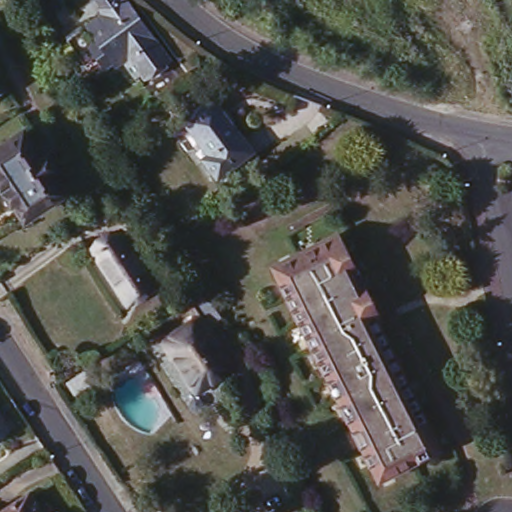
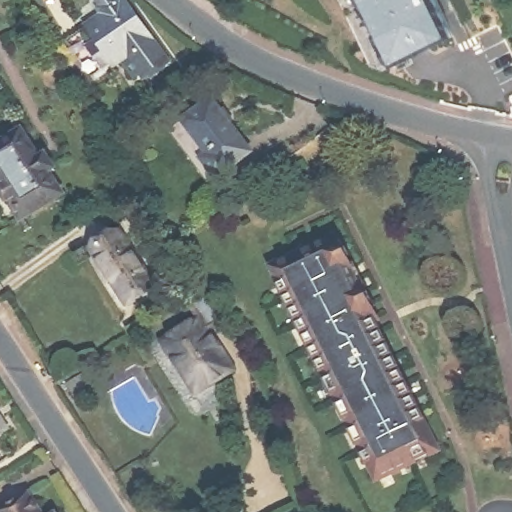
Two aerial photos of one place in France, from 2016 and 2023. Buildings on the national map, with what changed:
unchanged [(111,0),(139,0),(177,55),(152,72),(137,52),(124,60),(101,26),(96,20),(108,11),(112,8),(107,2),(111,0)]
new [(396,63),(364,0),(435,0),(454,36),(396,63)]
unchanged [(75,35),(92,24),(107,46),(111,46),(120,58),(101,71),(75,35)]
unchanged [(207,162),(213,157),(187,123),(216,101),(256,154),(221,179),(207,162)]
unchanged [(0,138),(18,126),(29,144),(35,140),(49,164),(43,168),(56,188),(18,211),(14,214),(0,192),(0,138)]
unchanged [(84,240),(112,223),(147,275),(119,293),(84,240)]
unchanged [(372,313),(441,442),(383,473),(272,267),(335,234),(350,260),(362,284),(377,310),(372,313)]
unchanged [(187,290),(202,301),(206,306),(209,312),(194,321),(225,368),(189,392),(157,339),(192,317),(177,296),(187,290)]
unchanged [(0,434),(0,413),(10,428),(0,434)]
unchanged [(0,504),(22,490),(36,512),(0,512),(0,504)]
unchanged [(49,511),(49,512),(48,512),(49,511)]

